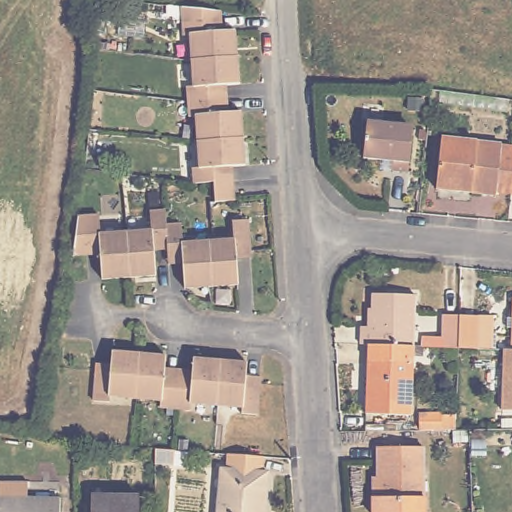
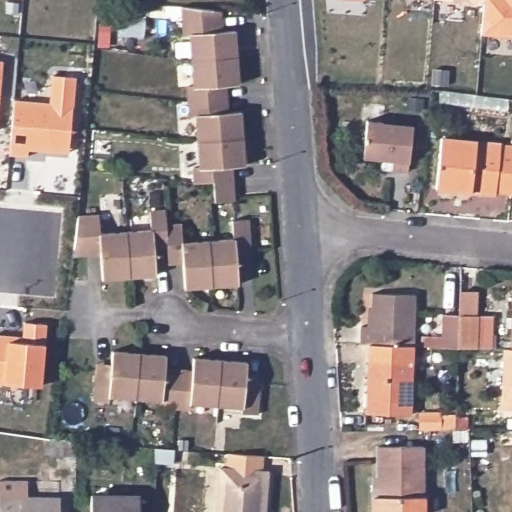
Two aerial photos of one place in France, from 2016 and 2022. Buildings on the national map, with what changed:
new [(482,2),(457,0),(482,0),(482,2)]
new [(481,32),(482,2),(482,0),(512,0),(512,35),(481,32)]
unchanged [(190,183),(189,167),(196,166),(193,116),(185,117),(183,86),(187,86),(190,85),(187,34),(180,34),(178,7),(201,10),(210,11),(216,12),(218,30),(230,30),(233,83),(222,84),(223,113),(236,113),(240,163),(228,164),(229,179),(241,178),(242,198),(212,201),(210,181),(190,183)]
new [(0,67),(0,61),(1,61),(0,67)]
new [(59,152),(26,149),(26,157),(8,155),(13,101),(49,104),(51,76),(74,78),(68,145),(66,153),(59,152)]
unchanged [(412,124),(407,166),(391,165),(392,157),(363,153),(368,115),(385,117),(385,120),(412,124)]
unchanged [(496,186),(494,194),(435,185),(442,135),(512,145),(512,181),(511,188),(496,186)]
unchanged [(512,181),(512,194),(511,193),(511,188),(512,181)]
unchanged [(168,248),(154,249),(156,274),(103,277),(101,253),(73,255),(74,247),(75,231),(77,217),(100,215),(101,234),(151,230),(151,212),(166,211),(168,224),(182,223),(184,242),(234,239),(233,220),(249,219),(251,250),(252,257),(237,259),(239,283),(187,286),(185,261),(169,262),(169,255),(168,248)]
unchanged [(371,308),(377,308),(378,292),(415,294),(413,346),(386,345),(367,344),(367,345),(364,344),(365,325),(370,325),(371,308)]
unchanged [(475,354),(458,353),(440,352),(441,317),(459,318),(476,319),(475,354)]
unchanged [(511,350),(512,318),(512,351),(511,350)]
new [(23,320),(47,322),(41,383),(0,380),(0,333),(21,334),(23,320)]
unchanged [(410,414),(364,412),(367,345),(367,344),(386,345),(413,346),(410,414)]
unchanged [(501,411),(504,350),(511,350),(512,351),(512,411),(501,411)]
unchanged [(164,362),(164,374),(193,376),(193,365),(246,368),(245,381),(258,381),(258,388),(256,419),(241,419),(241,411),(191,407),(191,414),(160,412),(160,404),(110,401),(109,407),(94,407),(96,375),(96,369),(110,370),(111,358),(164,362)]
unchanged [(420,512),(370,512),(370,498),(375,498),(374,449),(419,448),(420,512)]
unchanged [(269,473),(266,512),(218,512),(222,469),(229,470),(230,452),(263,455),(262,472),(269,473)]
unchanged [(58,497),(57,512),(0,512),(0,481),(23,481),(23,497),(58,497)]
unchanged [(89,512),(90,496),(135,495),(134,512),(89,512)]

